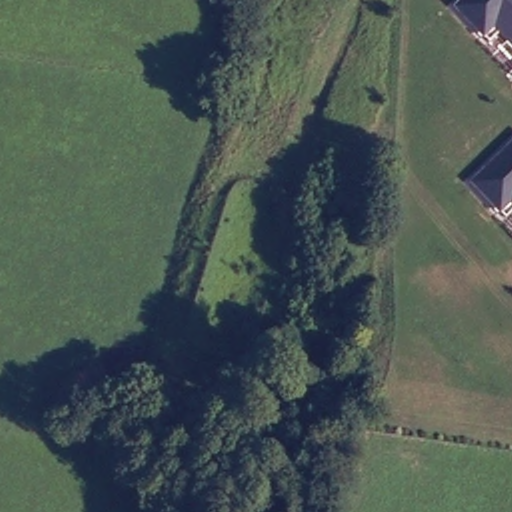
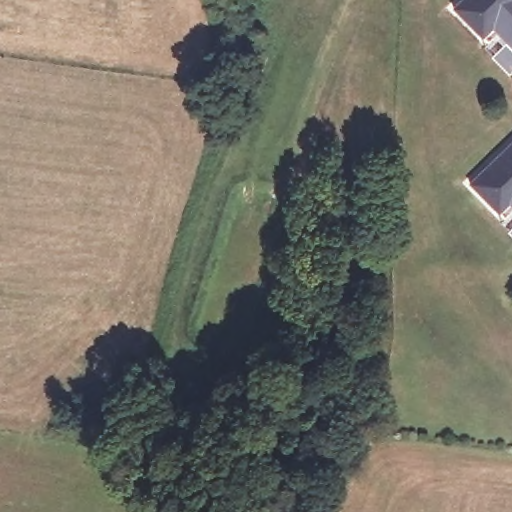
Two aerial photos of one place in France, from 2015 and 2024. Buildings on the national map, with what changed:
unchanged [(485,42),(451,7),(459,0),(512,0),(512,54),(494,34),(485,42)]
unchanged [(512,69),(512,72),(510,70),(512,69)]
unchanged [(502,219),(467,183),(512,142),(512,212),(510,210),(502,219)]

